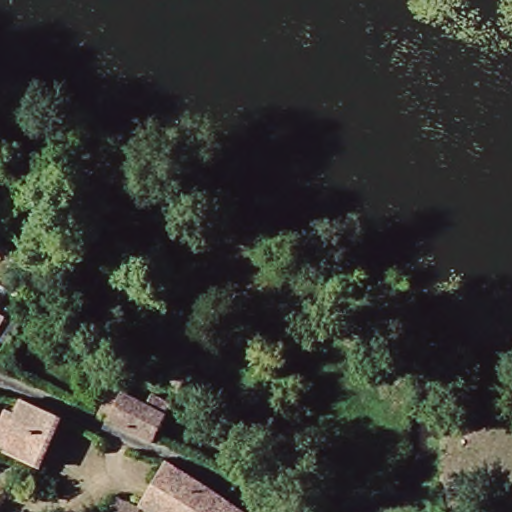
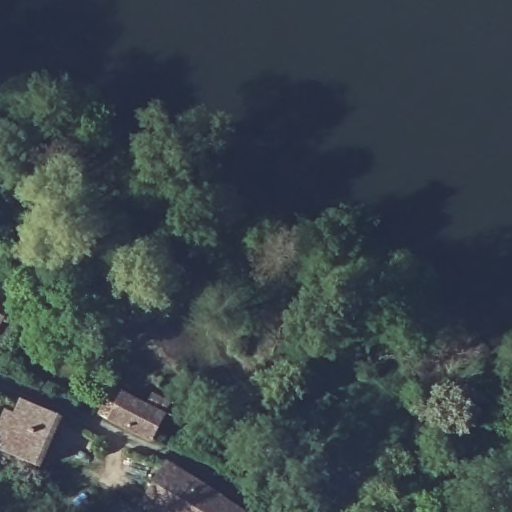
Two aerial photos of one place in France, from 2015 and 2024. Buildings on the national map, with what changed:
unchanged [(0,290),(0,289),(1,289),(0,290)]
unchanged [(0,322),(0,306),(7,310),(0,322)]
unchanged [(110,388),(158,412),(146,436),(97,412),(110,388)]
unchanged [(30,464),(0,452),(0,418),(4,419),(14,396),(52,413),(30,464)]
unchanged [(242,512),(144,512),(132,504),(157,462),(207,491),(242,511),(242,512)]
unchanged [(132,504),(127,512),(112,512),(98,505),(107,490),(132,504)]

